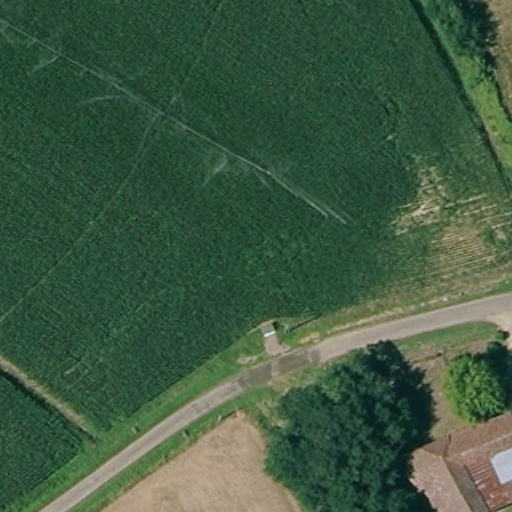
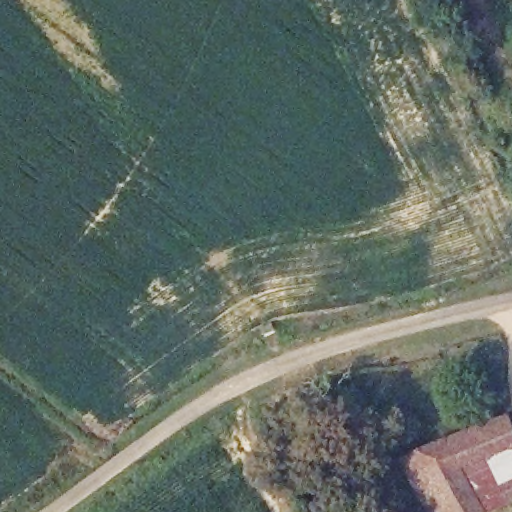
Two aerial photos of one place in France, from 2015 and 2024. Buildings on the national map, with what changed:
unchanged [(512,415),(512,448),(476,466),(486,486),(512,473),(512,498),(483,512),(462,512),(435,455),(434,453),(512,415)]
unchanged [(437,512),(413,466),(435,455),(462,512),(437,512)]

